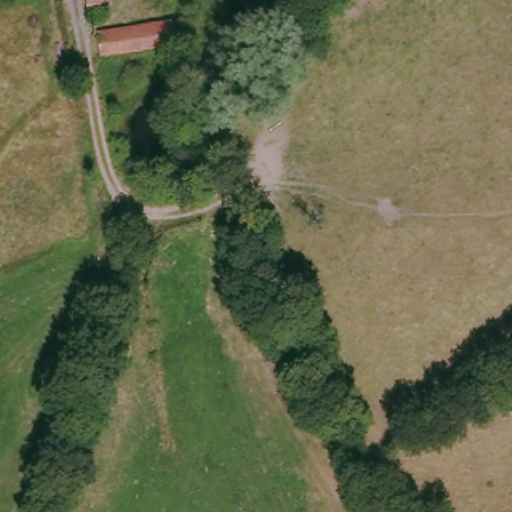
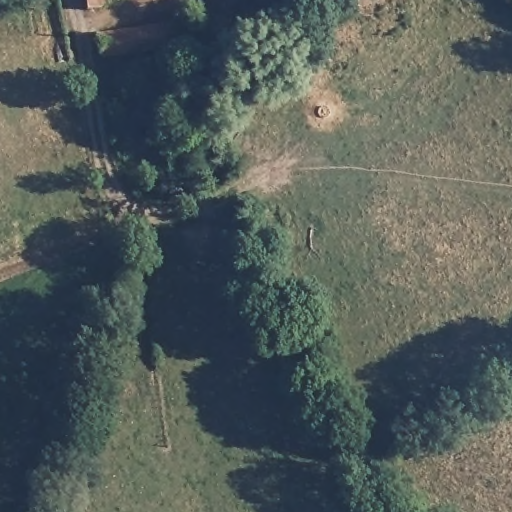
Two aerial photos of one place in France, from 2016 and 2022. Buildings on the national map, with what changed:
unchanged [(105,2),(92,4),(91,0),(107,0),(105,2)]
unchanged [(175,28),(177,46),(101,57),(95,33),(151,27),(152,30),(175,28)]

